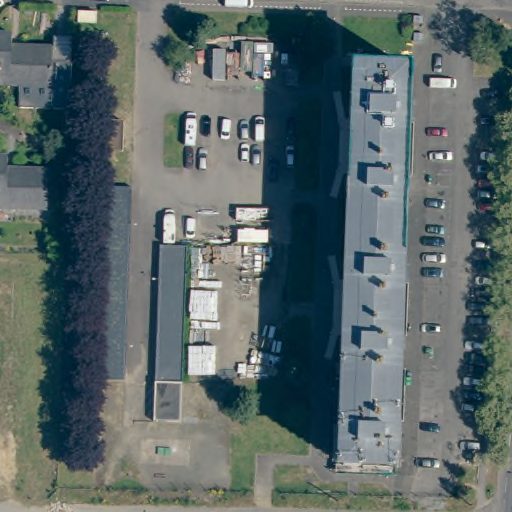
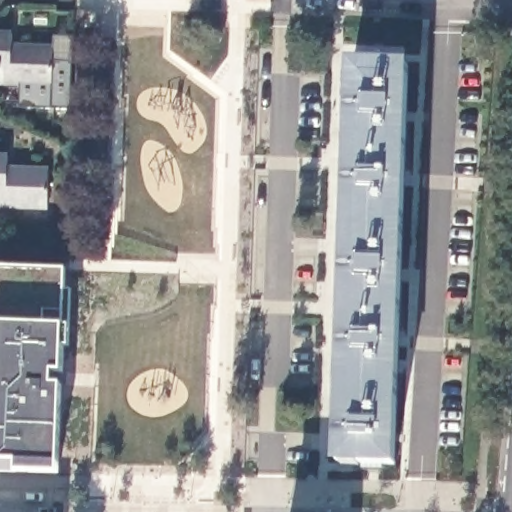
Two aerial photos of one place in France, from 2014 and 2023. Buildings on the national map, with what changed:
unchanged [(0,85),(0,35),(13,36),(13,49),(53,51),(52,87),(0,85)]
unchanged [(352,138),(356,65),(410,68),(407,141),(352,138)]
unchanged [(102,150),(104,121),(126,122),(125,151),(102,150)]
unchanged [(404,230),(349,227),(352,138),(407,141),(404,230)]
unchanged [(7,158),(6,171),(47,173),(47,210),(0,208),(0,158),(7,158)]
unchanged [(97,378),(106,186),(133,187),(125,380),(97,378)]
unchanged [(401,318),(346,316),(349,227),(404,230),(401,318)]
unchanged [(153,420),(155,380),(160,245),(187,246),(182,381),(180,421),(153,420)]
new [(67,269),(65,312),(64,326),(62,371),(54,371),(53,385),(62,385),(59,472),(18,471),(0,471),(0,267),(67,269)]
unchanged [(401,318),(398,392),(343,389),(346,316),(401,318)]
unchanged [(398,392),(395,464),(340,462),(343,389),(398,392)]

